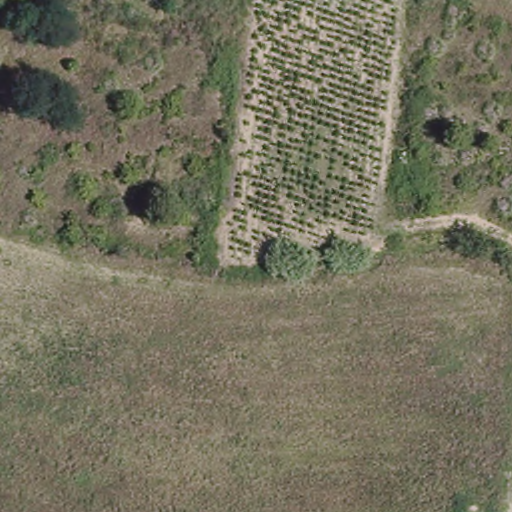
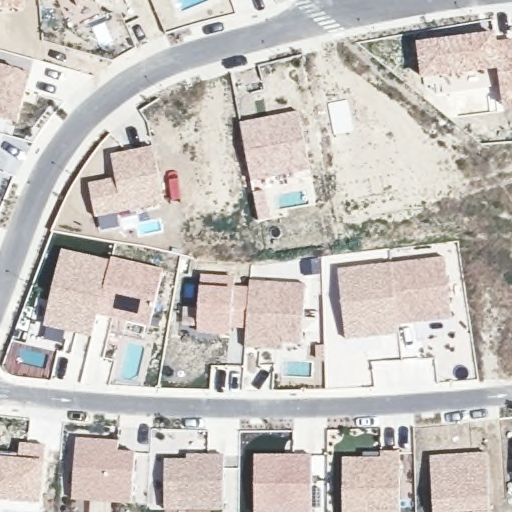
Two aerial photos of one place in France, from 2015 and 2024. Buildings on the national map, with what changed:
new [(23,7),(0,10),(0,0),(23,0),(23,7)]
new [(77,7),(74,0),(92,0),(77,7)]
new [(495,32),(497,41),(512,38),(512,106),(502,107),(496,70),(420,79),(415,42),(495,32)]
new [(16,123),(0,119),(0,64),(30,72),(16,123)]
new [(297,111),(309,170),(250,182),(238,122),(297,111)]
new [(115,179),(111,156),(153,147),(167,206),(96,219),(89,185),(115,179)]
new [(60,247),(109,258),(110,256),(163,268),(149,327),(98,316),(96,325),(92,338),(90,337),(73,334),(42,327),(60,247)]
new [(445,256),(452,319),(398,326),(398,333),(345,340),(337,268),(445,256)]
new [(197,308),(200,272),(235,275),(234,285),(231,328),(230,335),(195,332),(195,327),(180,325),(182,307),(197,308)]
new [(234,285),(247,286),(248,279),(305,282),(301,345),(283,345),(283,350),(243,347),(245,330),(231,328),(234,285)]
new [(77,438),(118,441),(118,451),(136,452),(132,503),(72,500),(77,438)]
new [(19,442),(45,445),(40,504),(0,500),(0,455),(17,457),(19,442)]
new [(380,457),(380,452),(400,452),(400,512),(343,512),(342,457),(380,457)]
new [(490,512),(431,512),(428,456),(486,452),(490,512)]
new [(185,458),(185,453),(225,453),(223,512),(210,512),(163,512),(163,458),(185,458)]
new [(312,512),(253,512),(252,453),(312,455),(312,512)]

